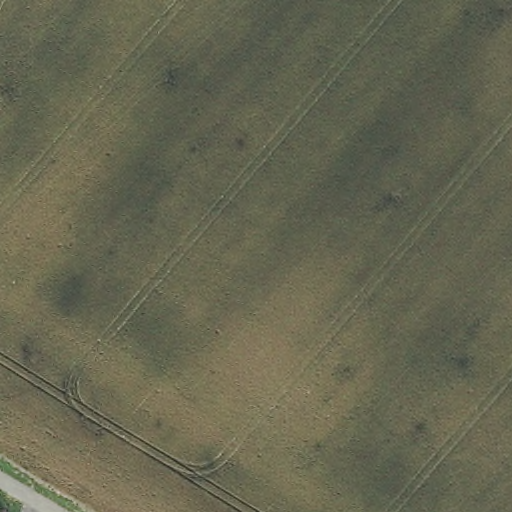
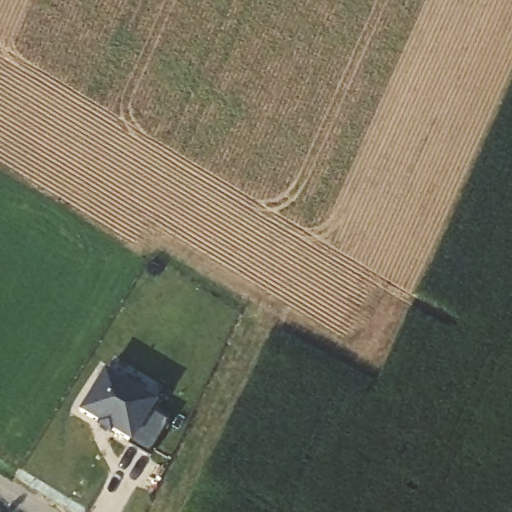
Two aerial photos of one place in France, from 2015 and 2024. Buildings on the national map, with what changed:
new [(158,402),(152,412),(168,421),(148,455),(128,444),(129,442),(111,432),(109,436),(95,427),(97,422),(78,412),(104,370),(158,402)]

